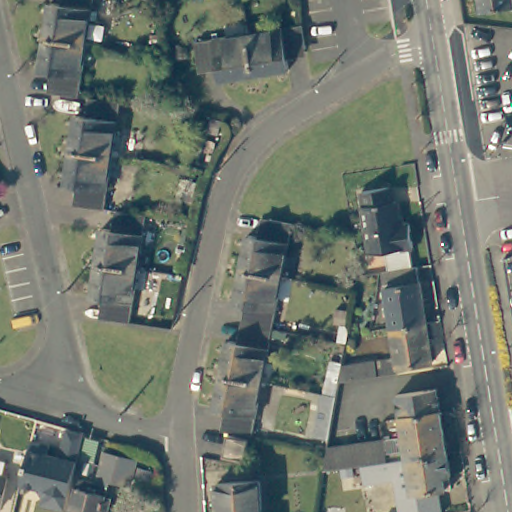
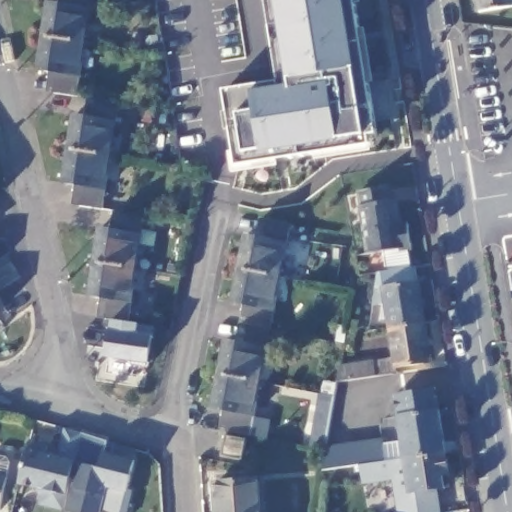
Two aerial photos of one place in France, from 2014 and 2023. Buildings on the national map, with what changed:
unchanged [(48,9),(66,11),(67,0),(92,0),(84,50),(42,44),(48,9)]
new [(362,4),(356,6),(359,31),(366,29),(374,82),(368,83),(377,136),(370,136),(371,143),(375,151),(319,161),(320,153),(279,160),(279,167),(234,175),(231,155),(237,154),(224,91),(279,82),(266,0),(361,0),(362,4)]
unchanged [(512,1),(480,7),(478,0),(512,0),(512,1)]
demolished [(290,26),(294,50),(273,54),(276,72),(243,77),(237,35),(290,26)]
demolished [(243,77),(210,82),(207,64),(188,67),(184,44),(237,35),(243,77)]
unchanged [(55,80),(37,77),(42,44),(84,50),(76,102),(52,99),(55,80)]
unchanged [(73,117),(91,120),(94,101),(120,105),(112,157),(68,151),(73,117)]
unchanged [(80,190),(62,188),(68,151),(112,157),(103,210),(78,205),(80,190)]
unchanged [(198,184),(191,207),(181,205),(188,182),(198,184)]
unchanged [(405,222),(409,243),(365,251),(356,190),(383,185),(386,200),(392,199),(396,224),(405,222)]
unchanged [(95,263),(101,229),(117,232),(120,212),(146,217),(138,270),(95,263)]
unchanged [(245,233),(263,237),(266,217),(289,222),(279,274),(239,267),(245,233)]
unchanged [(382,265),(405,261),(417,260),(426,315),(391,320),(385,282),(382,265)]
unchanged [(129,325),(105,321),(108,302),(90,298),(95,263),(138,270),(129,325)]
unchanged [(250,303),(232,300),(239,267),(279,274),(269,327),(247,323),(250,303)]
unchanged [(397,357),(391,320),(426,315),(432,354),(397,360),(399,367),(338,376),(340,366),(397,357)]
new [(107,358),(113,322),(127,324),(140,325),(153,327),(152,337),(149,364),(107,358)]
unchanged [(226,338),(244,342),(247,323),(269,327),(260,379),(220,372),(226,338)]
unchanged [(227,427),(230,408),(214,405),(220,372),(260,379),(250,432),(227,427)]
unchanged [(325,451),(326,447),(403,433),(396,393),(435,387),(447,450),(410,457),(408,455),(361,463),(357,463),(323,470),(325,451)]
unchanged [(35,422),(83,434),(72,477),(66,497),(30,487),(38,459),(27,456),(35,422)]
unchanged [(245,436),(242,456),(222,453),(226,432),(245,436)]
unchanged [(6,442),(3,457),(9,459),(0,502),(0,441),(6,442)]
unchanged [(446,486),(438,487),(442,511),(436,512),(399,512),(394,477),(364,482),(361,463),(408,455),(410,457),(447,450),(450,472),(452,485),(446,486)]
unchanged [(128,460),(122,482),(105,477),(103,486),(89,482),(98,452),(128,460)]
unchanged [(83,492),(89,493),(90,490),(98,492),(98,496),(101,496),(103,500),(100,512),(68,512),(63,510),(66,497),(72,477),(85,481),(83,492)]
unchanged [(261,484),(263,512),(219,512),(217,487),(261,484)]

